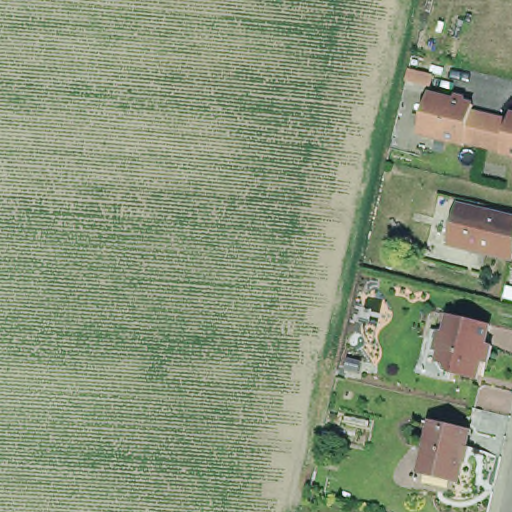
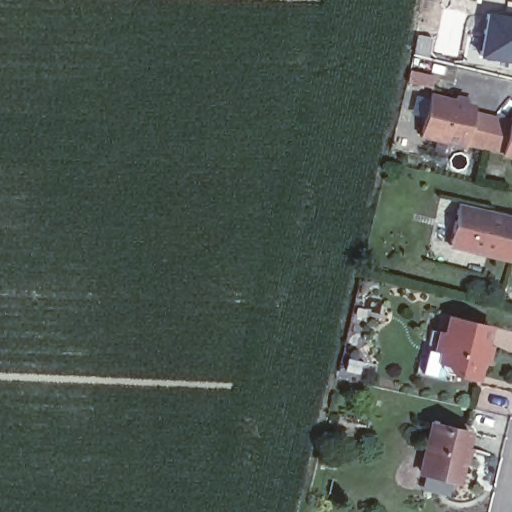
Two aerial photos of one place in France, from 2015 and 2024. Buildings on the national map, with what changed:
new [(482,52),(489,14),(512,19),(512,57),(482,52)]
unchanged [(502,151),(483,147),(463,142),(463,144),(419,134),(428,95),(454,101),(455,95),(462,97),(461,102),(472,105),(470,112),(490,117),(509,122),(510,114),(512,114),(512,156),(501,153),(502,151)]
unchanged [(492,214),(492,212),(512,217),(512,258),(452,244),(461,207),(492,214)]
unchanged [(494,340),(501,341),(497,357),(490,356),(486,374),(459,368),(458,375),(430,368),(441,324),(455,327),(459,311),(499,320),(494,340)]
unchanged [(462,481),(424,472),(436,422),(474,432),(462,481)]

